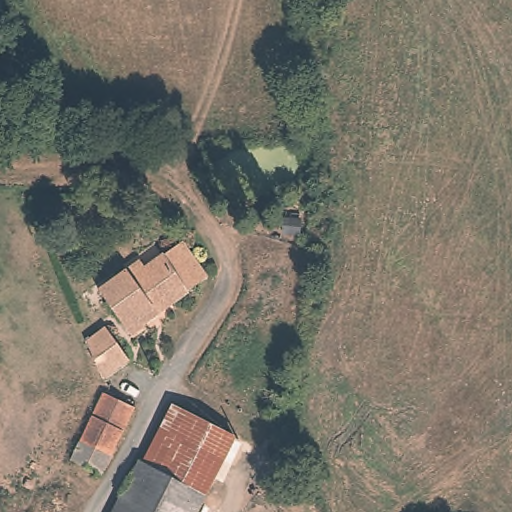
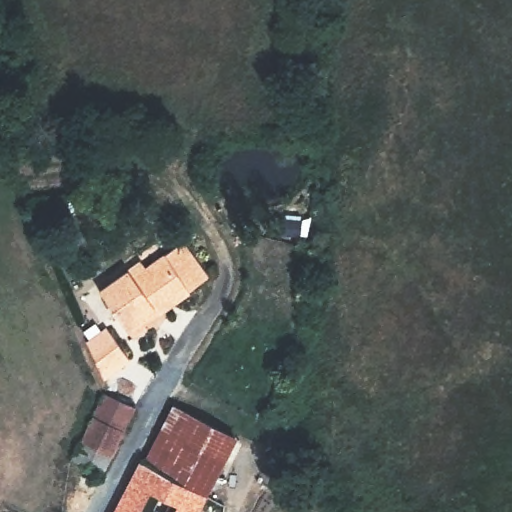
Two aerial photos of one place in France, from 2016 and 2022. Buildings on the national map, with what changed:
unchanged [(140,327),(135,322),(102,285),(137,257),(142,265),(185,232),(206,262),(149,312),(152,317),(140,327)]
unchanged [(130,359),(104,376),(97,380),(82,343),(102,330),(108,326),(117,338),(130,359)]
unchanged [(85,427),(102,391),(132,406),(105,470),(72,453),(85,427)]
unchanged [(231,425),(203,482),(160,463),(147,457),(179,399),(231,425)]
unchanged [(142,456),(147,457),(160,463),(139,507),(149,512),(113,512),(122,491),(142,456)]
unchanged [(196,512),(149,512),(139,507),(160,463),(203,482),(209,485),(196,512)]

